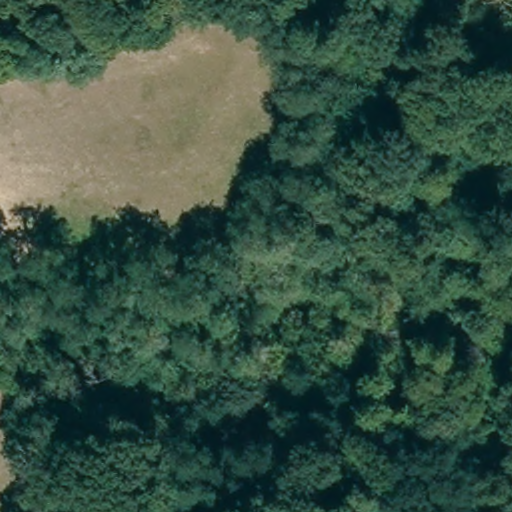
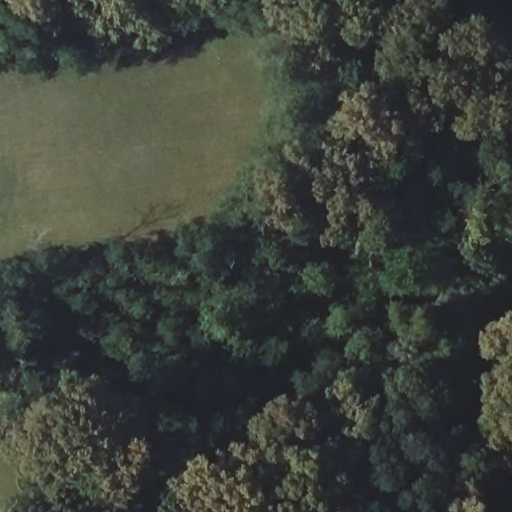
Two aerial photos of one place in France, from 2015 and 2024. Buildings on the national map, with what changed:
[]

